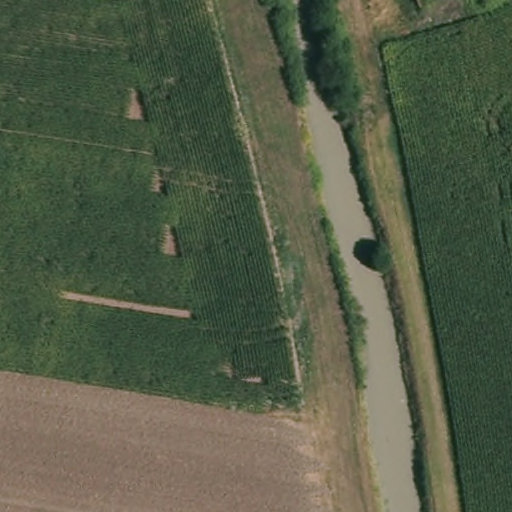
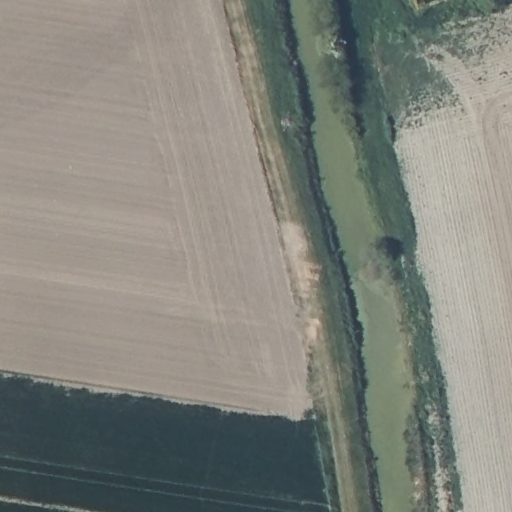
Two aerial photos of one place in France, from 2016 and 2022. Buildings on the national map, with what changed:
unchanged [(449,0),(465,0),(451,5),(449,0)]

